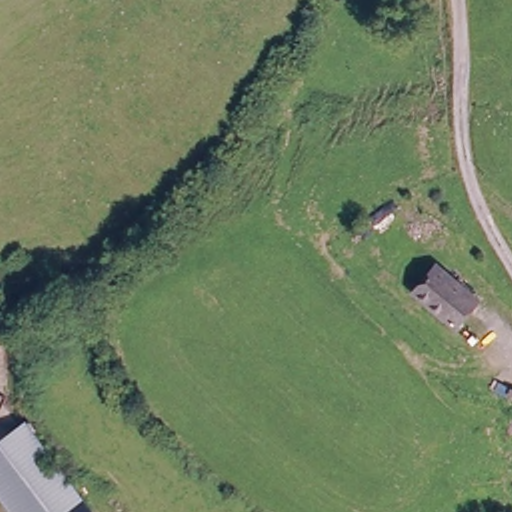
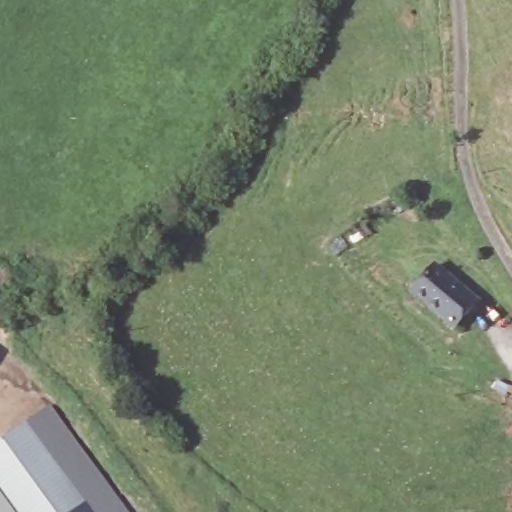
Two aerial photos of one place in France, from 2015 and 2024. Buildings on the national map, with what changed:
unchanged [(472,308),(459,324),(414,288),(436,261),(469,289),(480,297),(472,308)]
new [(29,420),(50,403),(131,512),(94,512),(87,503),(29,420)]
unchanged [(87,503),(74,512),(10,512),(0,498),(0,439),(29,420),(87,503)]
new [(10,512),(0,512),(0,498),(10,512)]
unchanged [(94,512),(74,512),(87,503),(94,512)]

